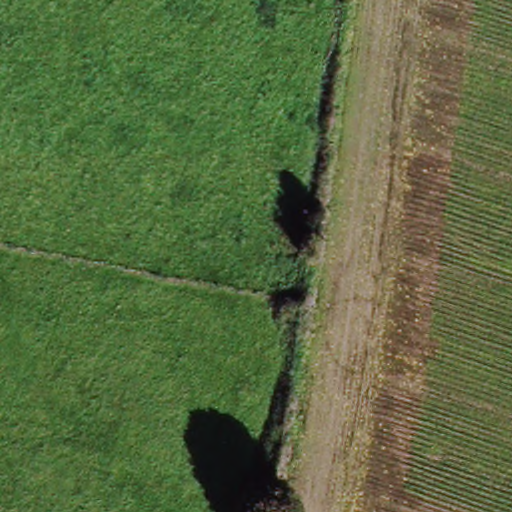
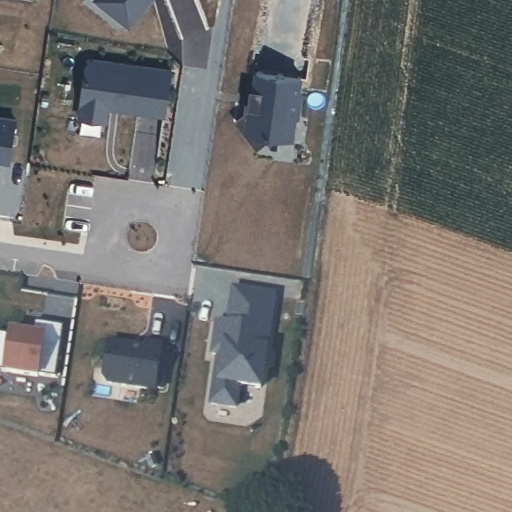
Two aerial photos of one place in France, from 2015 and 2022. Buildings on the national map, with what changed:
new [(129,27),(97,0),(150,0),(129,27)]
new [(174,67),(167,114),(109,107),(106,122),(77,118),(85,61),(92,56),(174,67)]
new [(301,75),(293,139),(269,137),(256,146),(235,117),(248,110),(254,71),(301,75)]
new [(12,161),(0,159),(0,114),(18,117),(12,161)]
new [(224,320),(232,286),(277,293),(269,348),(261,391),(239,388),(237,408),(208,404),(215,354),(208,352),(214,321),(224,320)]
new [(7,327),(32,331),(34,322),(62,325),(54,377),(40,374),(39,379),(4,372),(4,369),(0,368),(0,330),(7,330),(7,327)]
new [(142,343),(143,340),(162,344),(156,390),(105,383),(102,377),(105,340),(142,343)]

